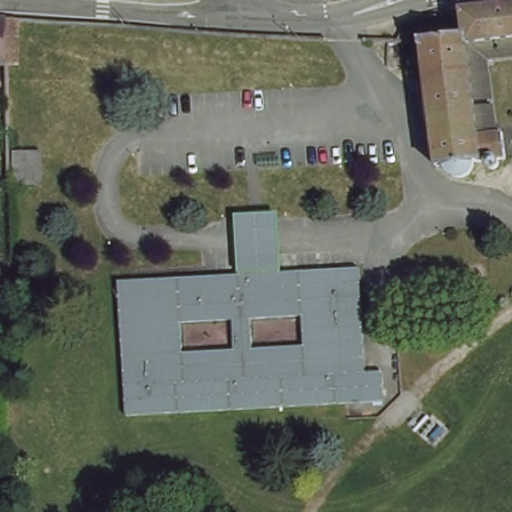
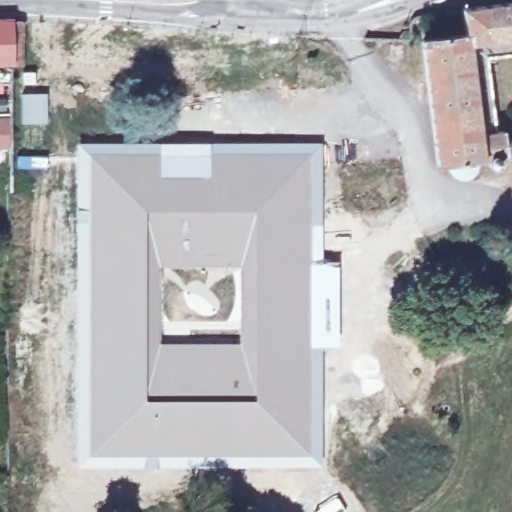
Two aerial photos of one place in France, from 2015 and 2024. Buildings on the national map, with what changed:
unchanged [(461,10),(512,4),(512,42),(464,47),(464,40),(461,14),(461,10)]
unchanged [(12,24),(12,68),(0,68),(0,24),(12,24)]
unchanged [(474,136),(497,134),(502,160),(497,162),(497,165),(495,168),(492,171),(488,171),(484,170),(482,166),(480,164),(474,164),(474,170),(473,174),(468,179),(465,181),(460,183),(454,182),(446,182),(443,177),(439,171),(438,166),(433,166),(420,45),(464,40),(464,47),(474,136)]
new [(48,92),(48,124),(21,124),(21,92),(48,92)]
new [(6,121),(6,146),(0,146),(0,121),(6,121)]
new [(76,142),(323,142),(324,260),(311,261),(311,347),(323,347),(324,420),(322,465),(310,464),(310,460),(88,456),(89,380),(86,280),(76,280),(75,222),(76,142)]
unchanged [(44,196),(9,200),(10,156),(44,156),(44,196)]
demolished [(364,376),(385,375),(384,408),(125,422),(119,285),(235,279),(234,216),(277,215),(279,271),(361,270),(364,376)]
new [(311,261),(324,260),(338,260),(338,347),(323,347),(311,347),(311,261)]

